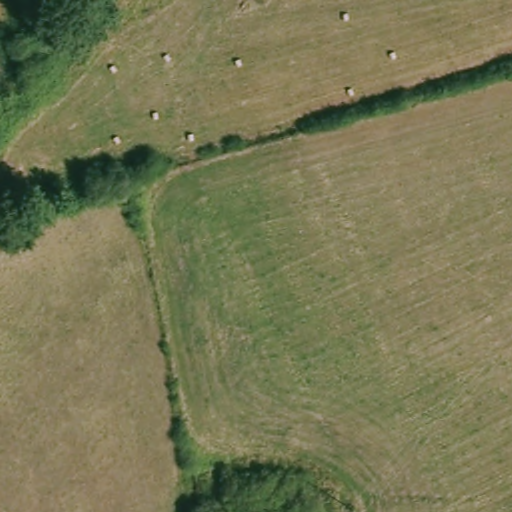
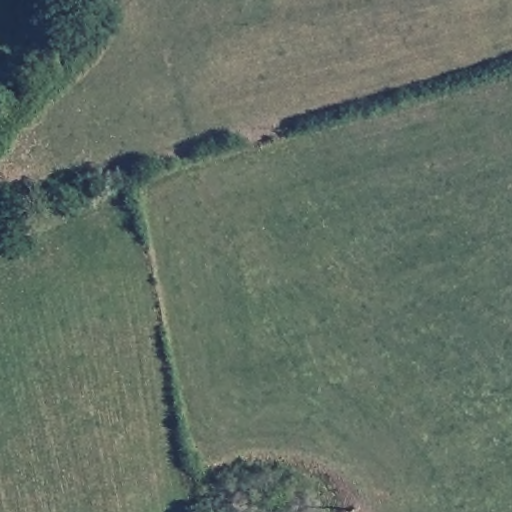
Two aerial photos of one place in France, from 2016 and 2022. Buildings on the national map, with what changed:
[]

